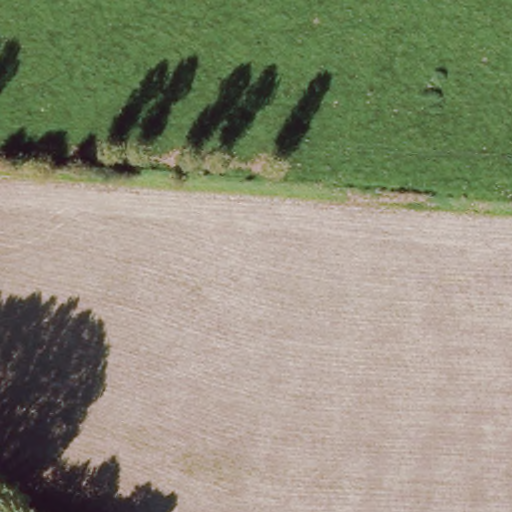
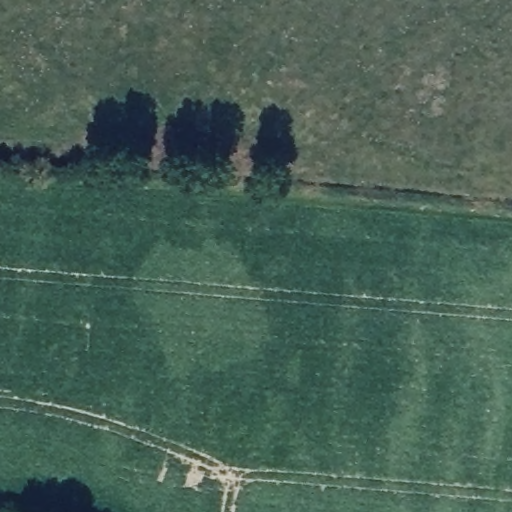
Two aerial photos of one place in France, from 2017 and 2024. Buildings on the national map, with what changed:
[]

